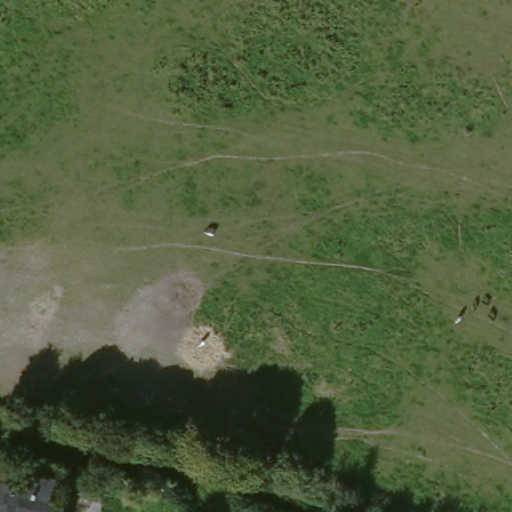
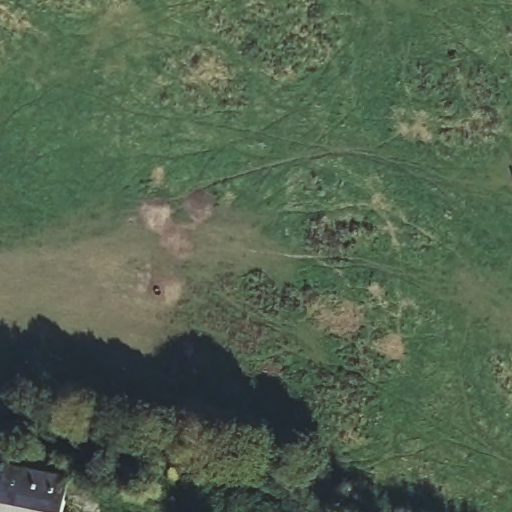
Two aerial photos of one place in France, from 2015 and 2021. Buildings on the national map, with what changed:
unchanged [(59,512),(0,512),(0,468),(66,480),(59,512)]

